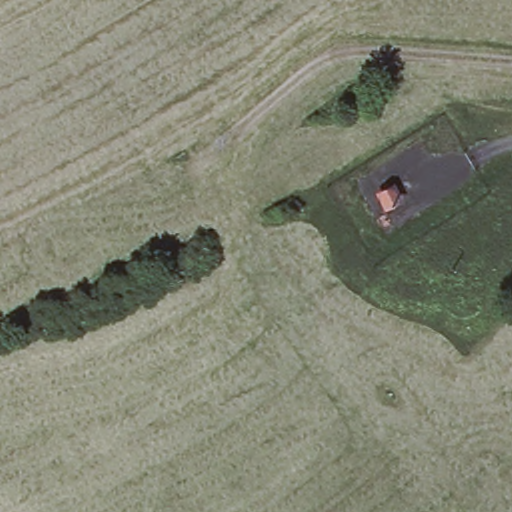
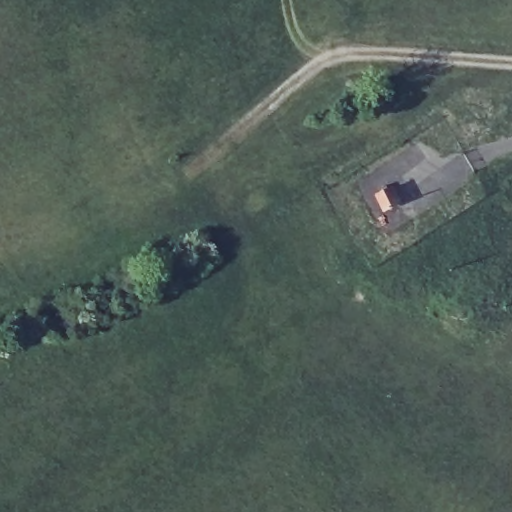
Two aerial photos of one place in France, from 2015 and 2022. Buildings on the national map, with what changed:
unchanged [(396,182),(405,201),(385,210),(376,191),(396,182)]

